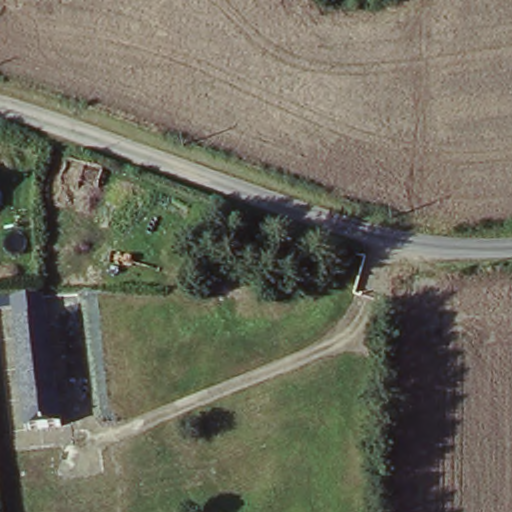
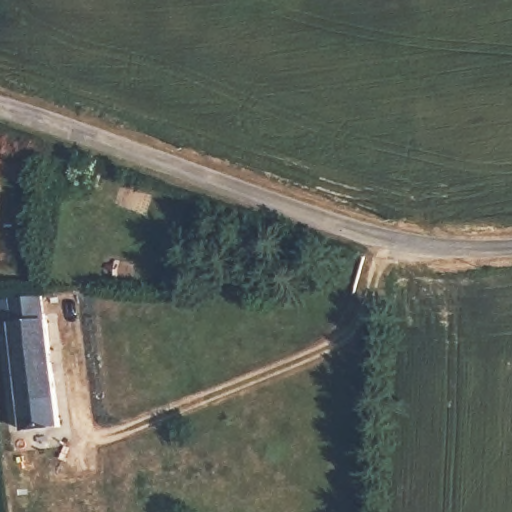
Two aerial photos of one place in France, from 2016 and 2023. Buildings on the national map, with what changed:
unchanged [(67,160),(105,171),(100,192),(81,185),(79,198),(59,192),(67,160)]
unchanged [(49,321),(67,318),(72,350),(52,353),(61,428),(26,432),(26,428),(19,370),(11,306),(11,298),(49,295),(49,321)]

